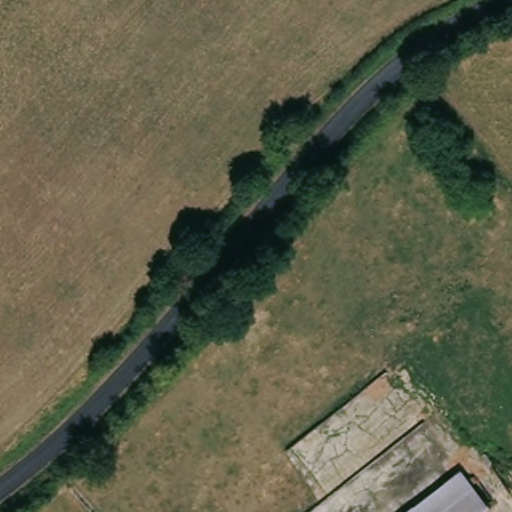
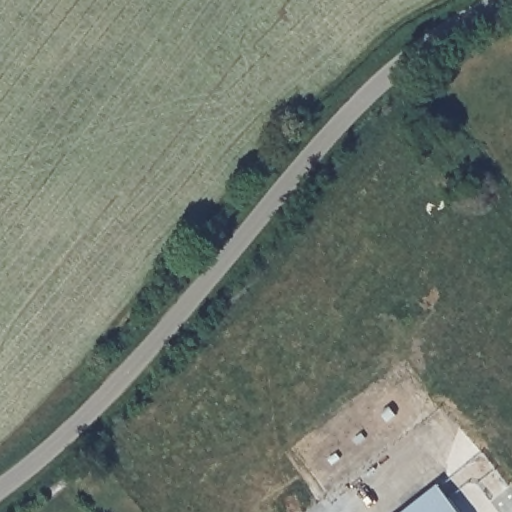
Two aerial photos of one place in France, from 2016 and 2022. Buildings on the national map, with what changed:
unchanged [(466,471),(493,505),(484,512),(414,512),(466,471)]

